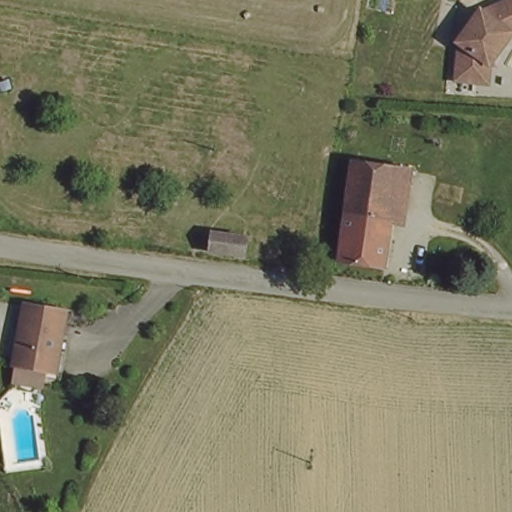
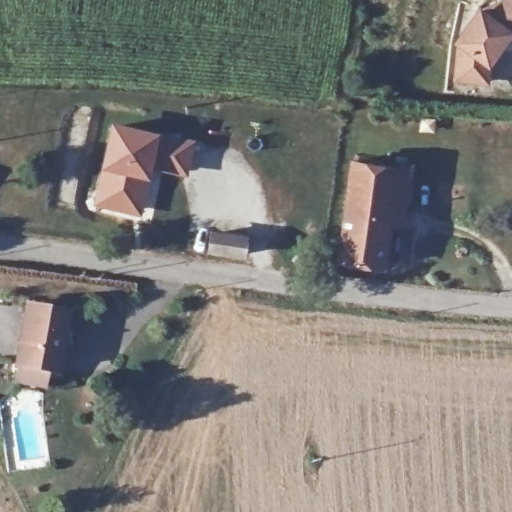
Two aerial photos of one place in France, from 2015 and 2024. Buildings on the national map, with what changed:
unchanged [(475,73),(455,72),(456,34),(453,32),(475,4),(485,0),(512,0),(512,22),(509,23),(487,55),(487,60),(485,74),(475,73)]
new [(103,162),(112,122),(160,131),(160,135),(194,141),(187,175),(150,167),(148,180),(144,179),(141,215),(91,205),(102,161),(103,162)]
unchanged [(400,172),(389,267),(347,261),(361,164),(400,172)]
unchanged [(245,262),(208,260),(210,233),(251,237),(245,262)]
unchanged [(7,379),(12,360),(5,359),(21,301),(58,309),(43,367),(38,366),(35,384),(7,379)]

